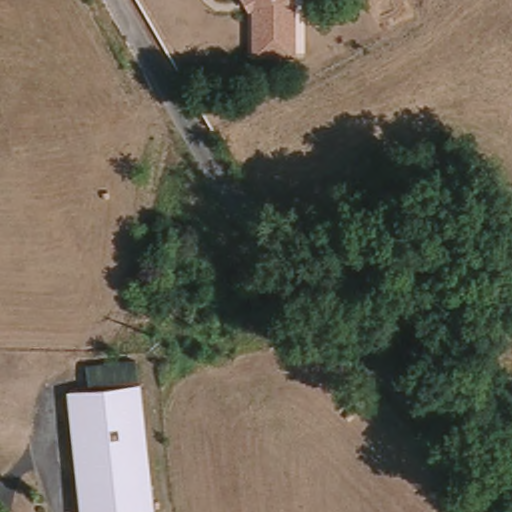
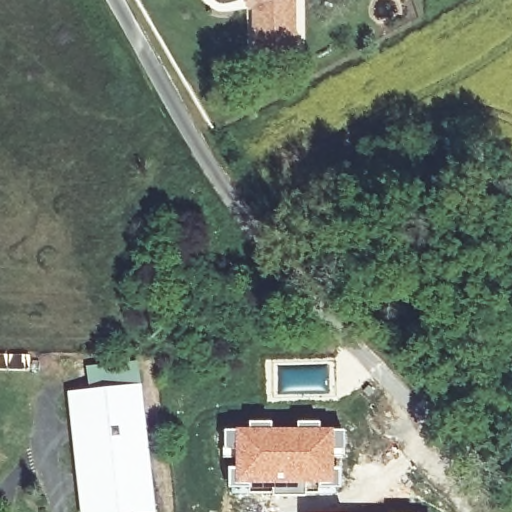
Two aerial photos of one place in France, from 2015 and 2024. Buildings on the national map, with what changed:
unchanged [(247,10),(243,0),(299,0),(298,58),(252,56),(252,8),(247,10)]
unchanged [(75,396),(138,392),(146,512),(83,512),(75,396)]
new [(221,429),(246,428),(246,421),(270,420),(270,428),(294,428),(294,421),(319,420),(319,428),(344,429),(340,487),(245,486),(245,490),(231,490),(231,488),(225,488),(225,466),(232,466),(232,459),(220,459),(221,429)]

